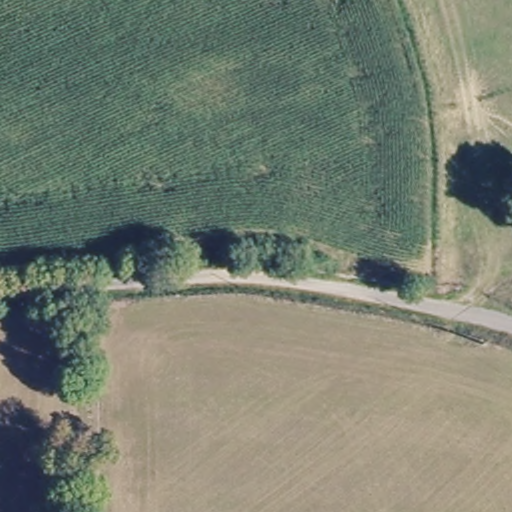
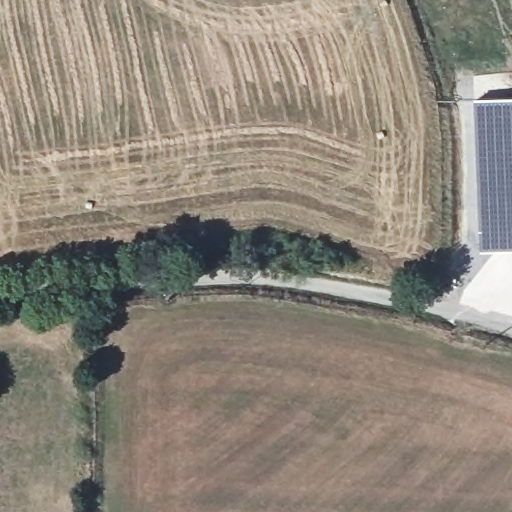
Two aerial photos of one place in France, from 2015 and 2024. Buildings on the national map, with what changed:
new [(474,186),(473,99),(512,97),(512,251),(478,251),(471,223),(468,223),(465,186),(474,186)]

